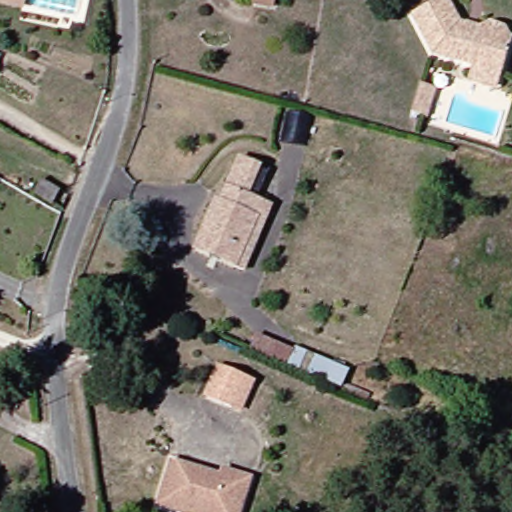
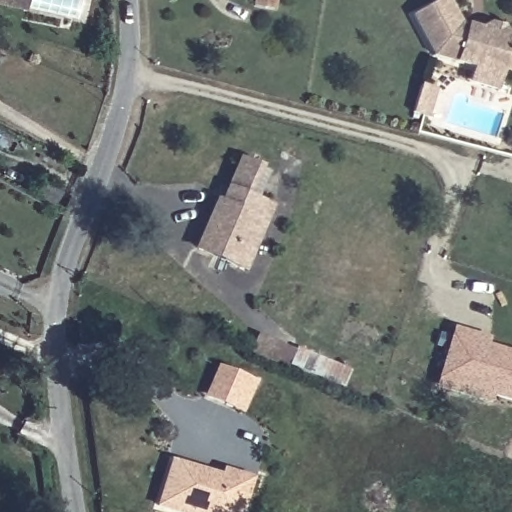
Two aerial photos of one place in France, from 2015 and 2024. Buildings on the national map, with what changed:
unchanged [(13,1),(5,0),(13,0),(13,1)]
unchanged [(249,0),(264,0),(263,3),(249,0)]
unchanged [(463,82),(468,68),(429,56),(407,15),(435,0),(444,0),(456,22),(463,25),(472,28),(485,24),(500,28),(506,38),(509,39),(497,76),(493,91),(463,82)]
unchanged [(236,264),(226,260),(187,244),(207,197),(211,199),(230,155),(249,163),(258,167),(246,195),(249,196),(262,202),(236,264)]
unchanged [(54,202),(36,192),(43,181),(60,191),(54,202)]
new [(451,328),(472,335),(483,339),(481,346),(512,355),(512,402),(488,394),(486,401),(434,386),(439,368),(451,328)]
unchanged [(338,371),(331,388),(280,366),(280,367),(241,350),(246,338),(285,355),(287,350),(338,371)]
unchanged [(242,409),(235,407),(207,394),(218,366),(248,378),(254,381),(242,409)]
unchanged [(166,461),(202,472),(216,476),(218,470),(246,478),(242,490),(235,512),(175,512),(152,505),(166,461)]

